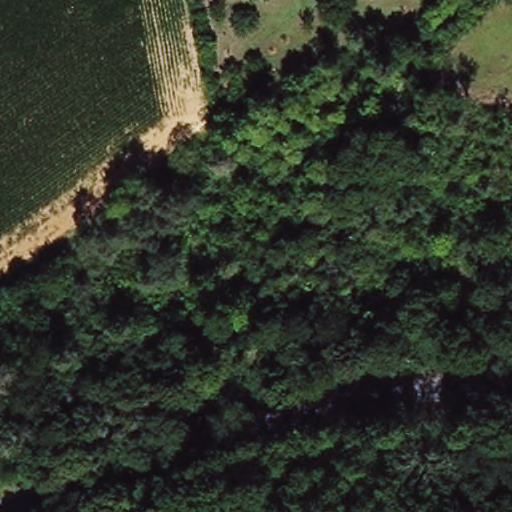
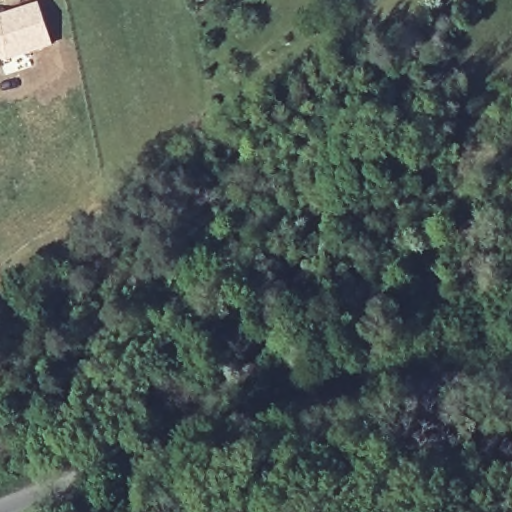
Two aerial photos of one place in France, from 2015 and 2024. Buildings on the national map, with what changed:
new [(38,1),(53,44),(13,59),(17,69),(4,73),(0,60),(0,12),(1,12),(38,1)]

